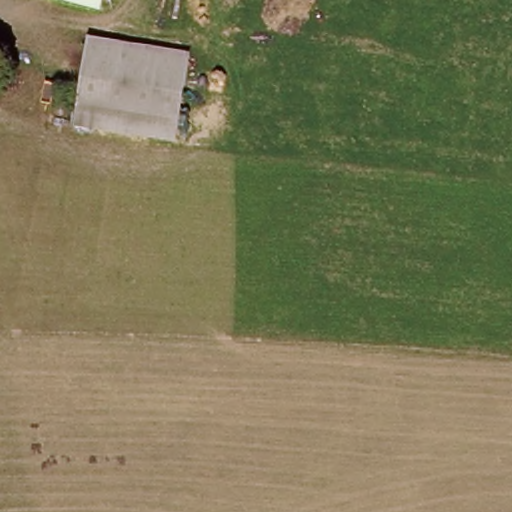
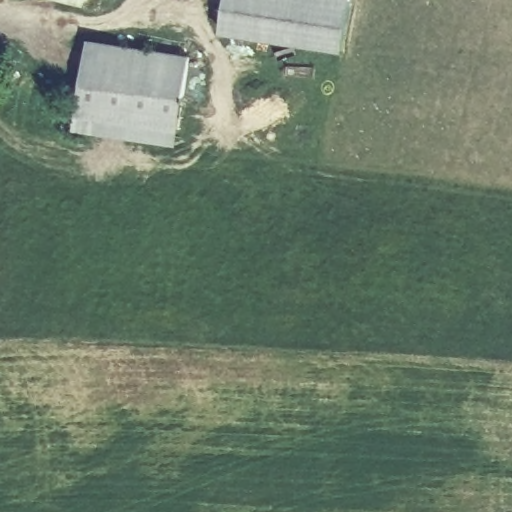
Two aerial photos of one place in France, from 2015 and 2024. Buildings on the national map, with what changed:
unchanged [(101,0),(100,5),(79,0),(101,0)]
new [(352,0),(345,47),(225,29),(230,0),(352,0)]
unchanged [(77,130),(91,38),(193,56),(177,146),(77,130)]

